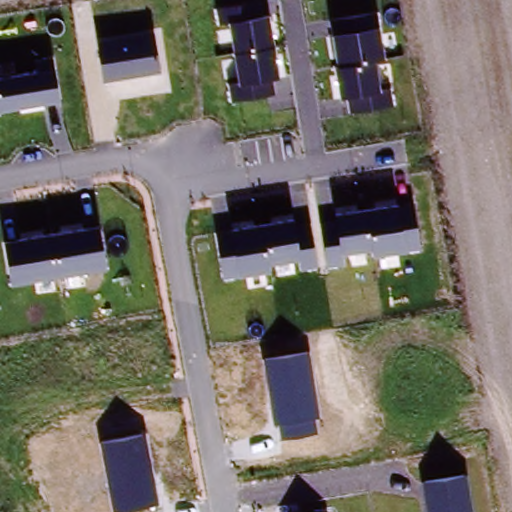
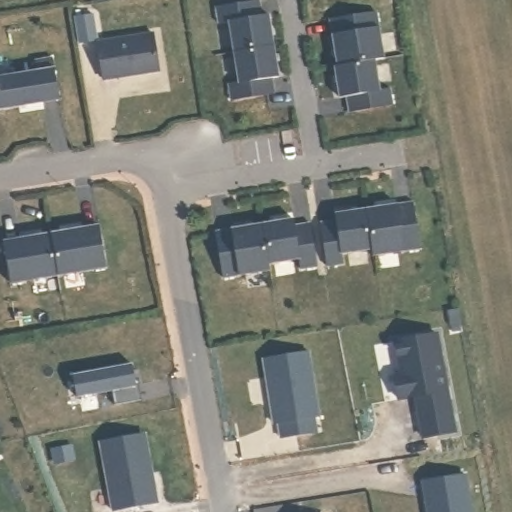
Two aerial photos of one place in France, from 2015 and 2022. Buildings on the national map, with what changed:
unchanged [(254,2),(255,16),(271,13),(280,78),(272,80),(274,94),(232,101),(229,85),(239,83),(230,23),(220,24),(218,7),(254,2)]
unchanged [(377,10),(385,59),(376,60),(380,89),(390,87),(394,105),(351,111),(349,97),(339,98),(333,64),(337,63),(333,35),(332,16),(377,10)]
unchanged [(154,32),(160,72),(103,81),(97,41),(154,32)]
unchanged [(0,111),(0,74),(40,68),(39,58),(53,56),(60,102),(0,111)]
unchanged [(422,247),(374,256),(372,248),(342,254),(344,262),(329,264),(322,217),(415,202),(422,247)]
unchanged [(292,218),(295,237),(312,234),(318,265),(302,268),(299,258),(267,262),(270,270),(222,277),(215,230),(292,218)]
unchanged [(98,224),(107,267),(12,283),(5,238),(98,224)]
new [(447,433),(416,439),(410,406),(414,405),(412,397),(391,400),(387,378),(395,377),(389,343),(429,336),(447,433)]
unchanged [(310,351),(321,417),(315,417),(317,433),(281,439),(279,424),(272,424),(264,358),(310,351)]
new [(115,391),(80,399),(75,376),(135,364),(139,387),(142,386),(144,401),(117,406),(115,391)]
unchanged [(160,505),(117,512),(113,512),(100,442),(147,433),(160,505)]
new [(72,447),(75,461),(57,464),(55,450),(72,447)]
unchanged [(472,512),(428,512),(422,479),(467,472),(472,512)]

